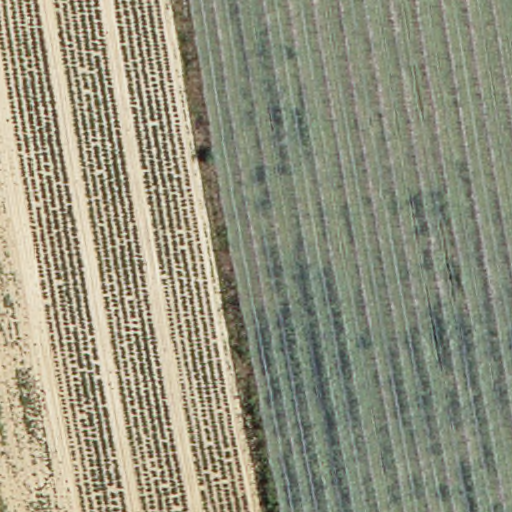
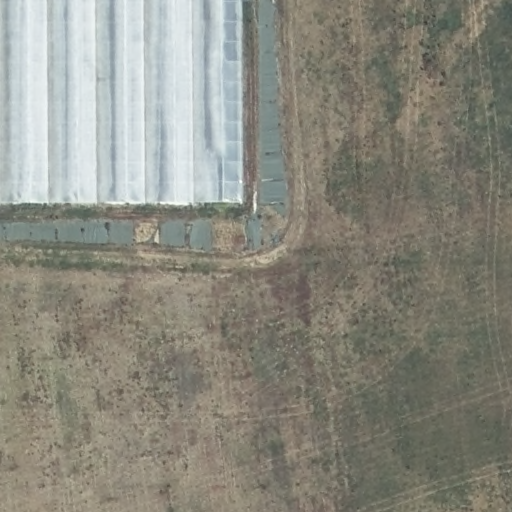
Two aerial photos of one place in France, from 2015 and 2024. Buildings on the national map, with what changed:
new [(0,202),(0,0),(233,0),(234,200),(0,202)]

